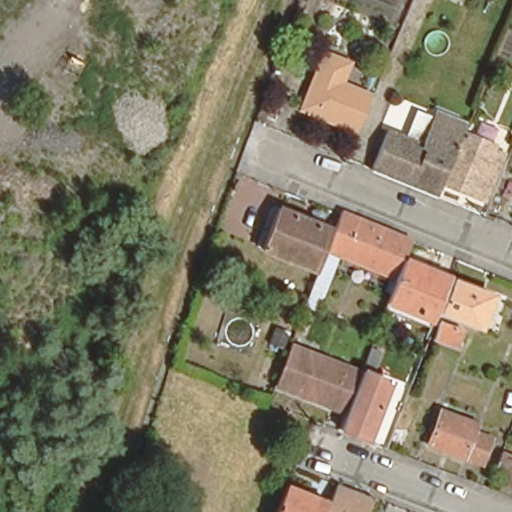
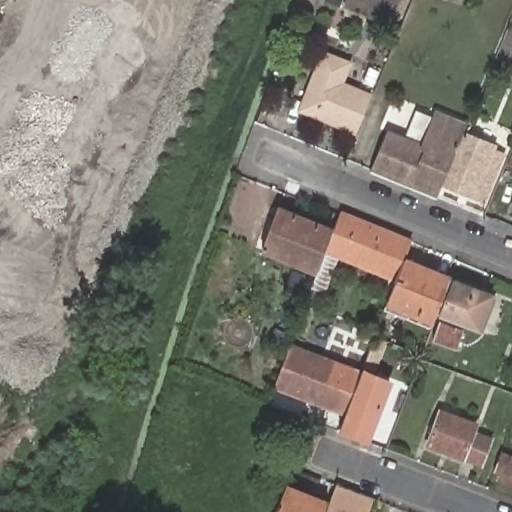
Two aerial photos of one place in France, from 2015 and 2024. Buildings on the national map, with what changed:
unchanged [(461,7),(444,1),(444,0),(464,0),(461,7)]
unchanged [(300,110),(323,54),(347,64),(339,85),(370,97),(355,132),(300,110)]
unchanged [(384,132),(378,131),(381,124),(421,140),(434,109),(465,121),(463,126),(455,148),(453,152),(443,179),(438,192),(430,190),(425,187),(412,182),(406,180),(370,166),(384,132)]
unchanged [(453,152),(455,148),(456,149),(464,130),(493,141),(491,146),(503,151),(485,196),(443,179),(453,152)]
unchanged [(339,232),(330,255),(341,260),(343,261),(324,307),(300,297),(312,265),(265,247),(278,210),(339,232)]
unchanged [(346,217),(379,231),(386,234),(394,237),(416,247),(412,257),(409,265),(401,283),(343,261),(341,260),(330,255),(339,232),(345,219),(345,217),(346,217)]
unchanged [(455,283),(438,326),(391,307),(395,297),(401,283),(409,265),(455,283)]
unchanged [(455,291),(457,287),(476,293),(497,301),(485,337),(444,322),(455,291)]
unchanged [(442,328),(467,337),(461,353),(437,345),(442,328)]
unchanged [(274,385),(289,346),(361,374),(346,413),(274,385)]
unchanged [(346,413),(361,374),(361,373),(389,385),(367,442),(339,432),(346,413)]
unchanged [(432,433),(427,431),(430,423),(435,425),(440,411),(442,407),(446,409),(445,412),(476,425),(473,432),(491,439),(481,465),(463,457),(428,445),(432,433)]
unchanged [(506,449),(504,455),(512,458),(512,485),(499,480),(502,472),(495,469),(503,447),(506,449)]
unchanged [(333,497),(327,512),(278,512),(291,481),(333,497)]
unchanged [(353,512),(329,512),(339,486),(361,494),(353,512)]

